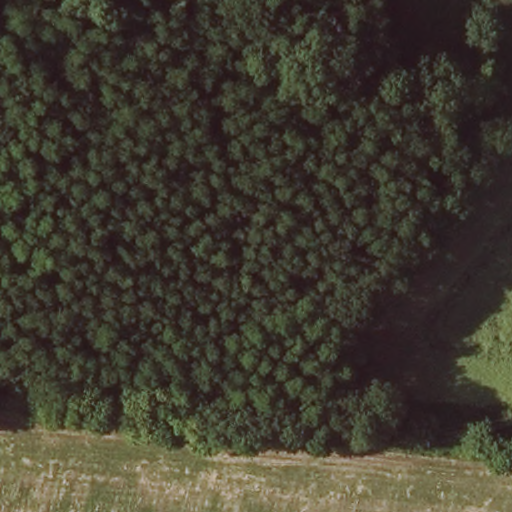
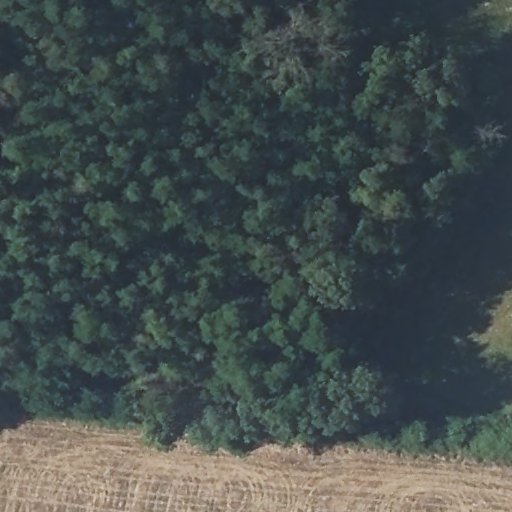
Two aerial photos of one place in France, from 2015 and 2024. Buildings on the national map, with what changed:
[]

